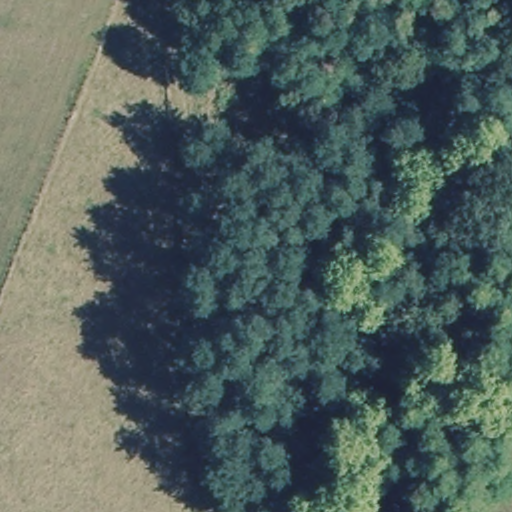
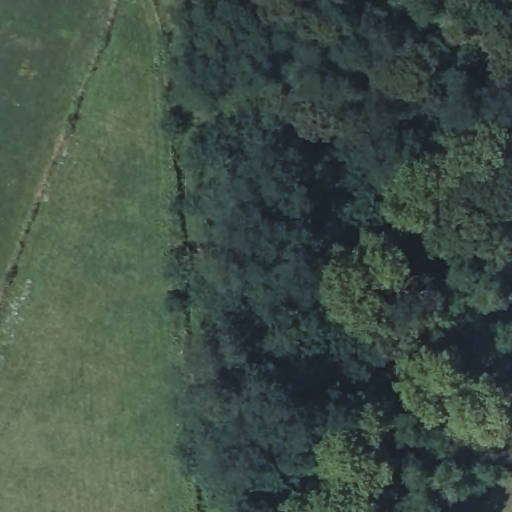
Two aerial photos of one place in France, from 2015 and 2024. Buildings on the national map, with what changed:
[]

